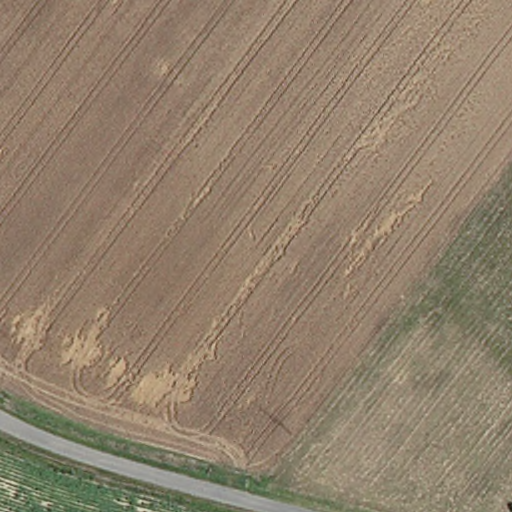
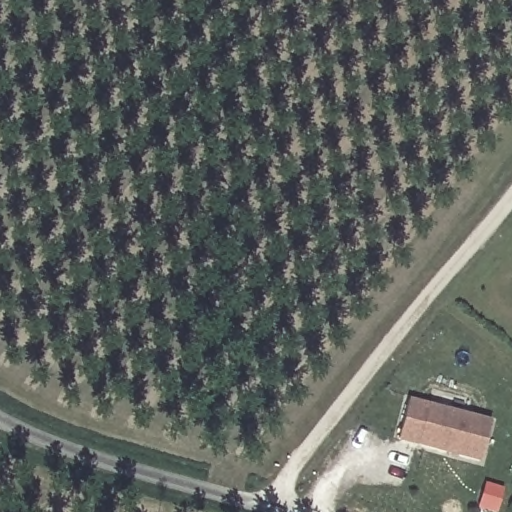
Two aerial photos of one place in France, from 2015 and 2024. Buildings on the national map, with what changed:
new [(397,441),(408,398),(491,419),(479,464),(397,441)]

